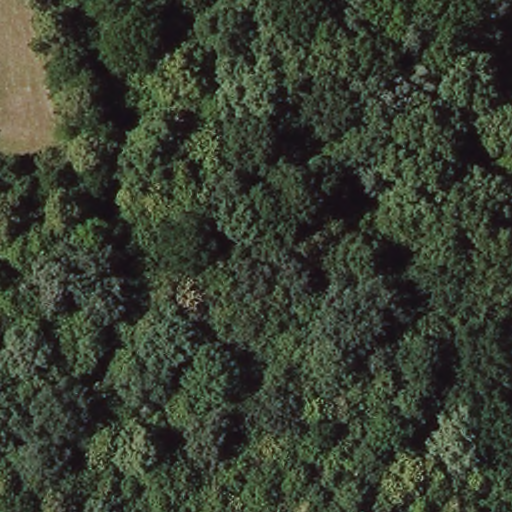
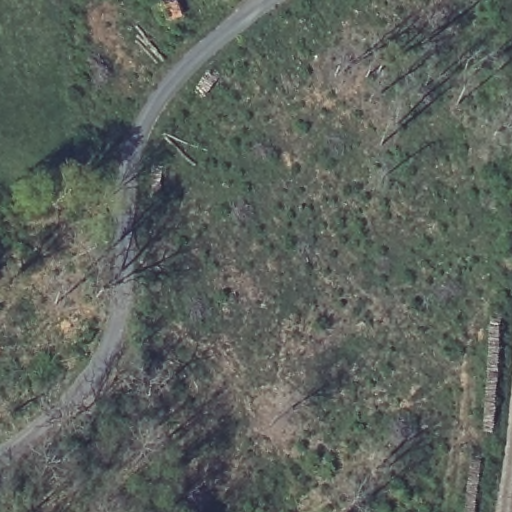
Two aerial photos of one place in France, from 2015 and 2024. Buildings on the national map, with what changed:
unchanged [(167,19),(161,0),(176,0),(181,15),(167,19)]

